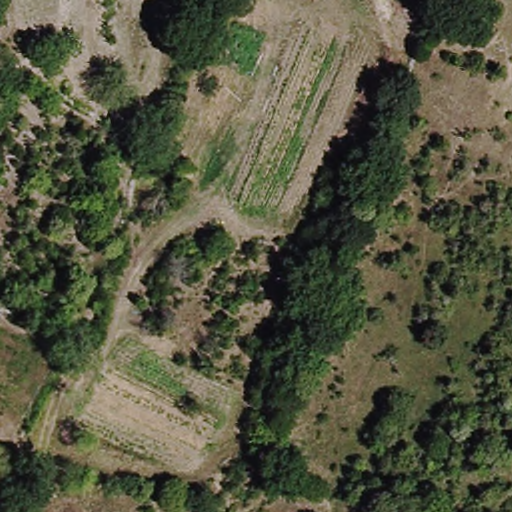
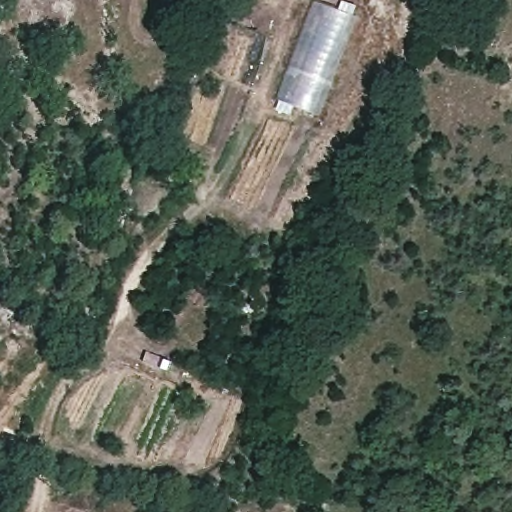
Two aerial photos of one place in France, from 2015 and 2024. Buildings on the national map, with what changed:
new [(278,99),(311,0),(314,0),(352,13),(319,114),(278,99)]

